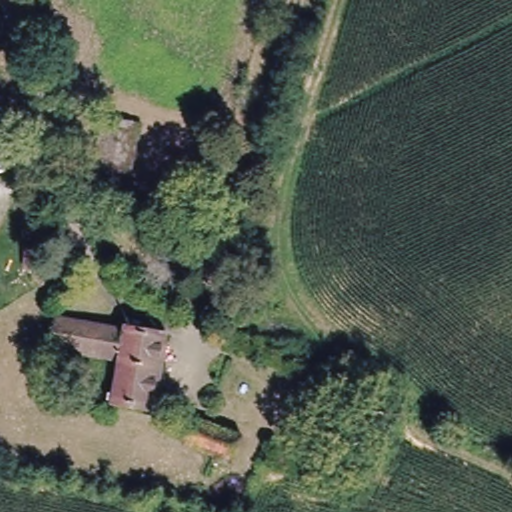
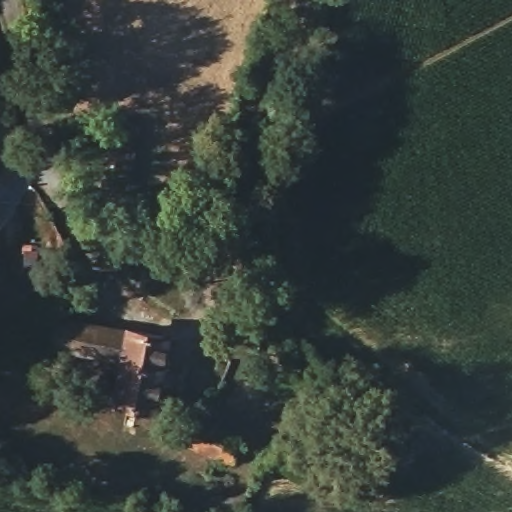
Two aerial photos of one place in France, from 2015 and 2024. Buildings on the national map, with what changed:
unchanged [(123,186),(91,181),(101,117),(134,121),(123,186)]
unchanged [(111,393),(120,360),(77,351),(51,346),(58,315),(83,319),(169,336),(153,407),(151,412),(103,401),(104,397),(105,392),(111,393)]
unchanged [(180,445),(187,419),(236,433),(227,460),(212,455),(180,445)]

